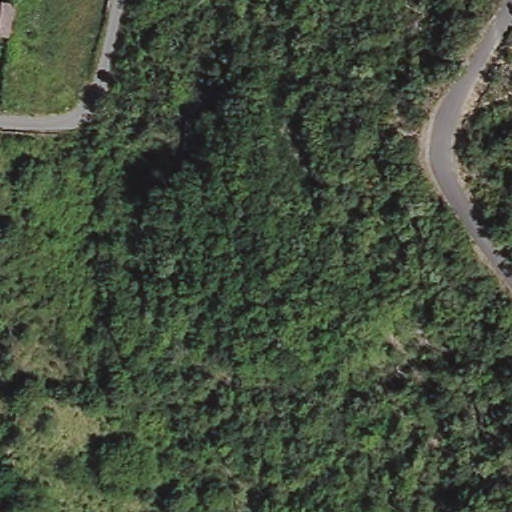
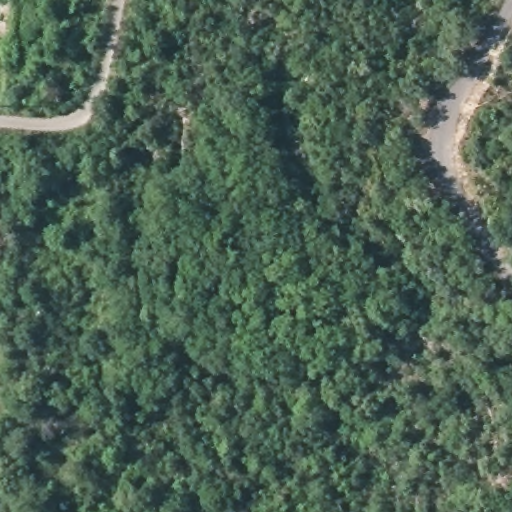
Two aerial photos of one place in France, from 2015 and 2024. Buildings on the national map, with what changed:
unchanged [(0,34),(0,0),(6,0),(13,0),(8,35),(0,34)]

